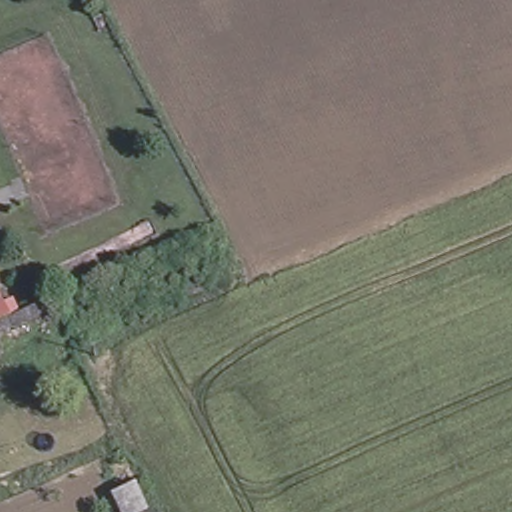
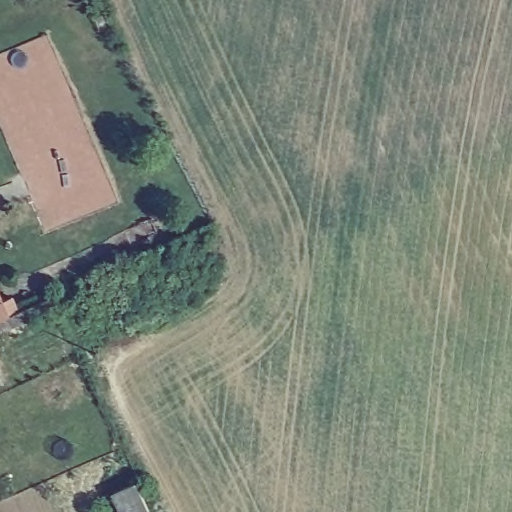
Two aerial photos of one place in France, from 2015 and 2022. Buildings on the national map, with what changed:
unchanged [(1,306),(10,302),(17,316),(46,302),(51,312),(0,335),(0,306),(1,306)]
unchanged [(116,494),(138,484),(150,512),(123,512),(116,494)]

